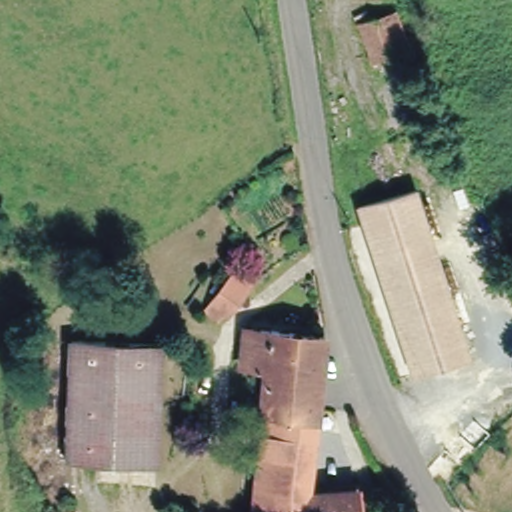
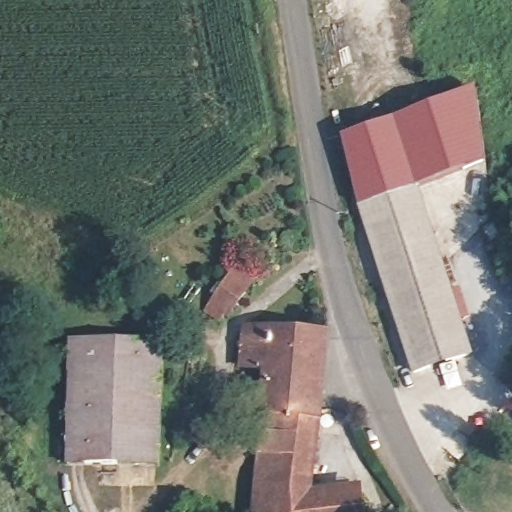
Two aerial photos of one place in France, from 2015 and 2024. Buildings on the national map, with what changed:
demolished [(409,48),(373,60),(360,22),(394,9),(409,48)]
new [(476,94),(483,166),(412,189),(358,207),(341,137),(476,94)]
unchanged [(358,207),(412,189),(446,292),(444,292),(388,309),(355,208),(358,207)]
unchanged [(255,281),(225,322),(208,309),(226,283),(236,271),(253,280),(255,281)]
unchanged [(467,356),(410,375),(388,309),(444,292),(446,292),(467,356)]
unchanged [(313,415),(312,421),(257,416),(262,367),(236,366),(239,328),(318,336),(313,415)]
unchanged [(65,344),(153,346),(152,460),(63,460),(65,344)]
unchanged [(312,421),(308,483),(308,494),(308,512),(248,512),(257,416),(312,421)]
unchanged [(308,494),(356,491),(358,512),(308,512),(308,494)]

